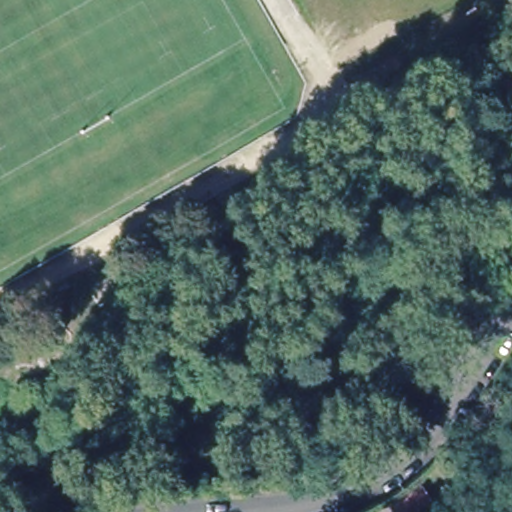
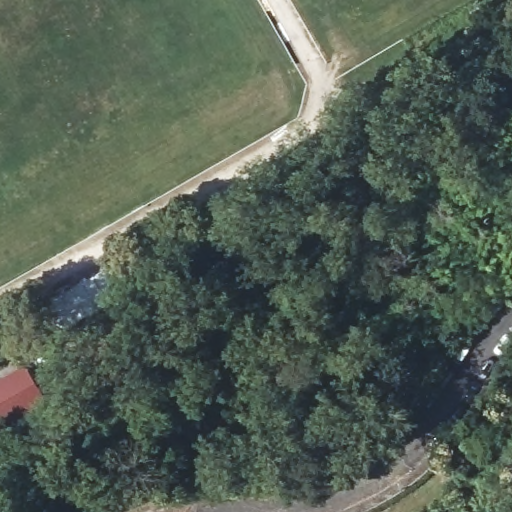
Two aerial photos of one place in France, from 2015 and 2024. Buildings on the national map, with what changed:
new [(45,400),(7,421),(4,415),(0,416),(0,378),(24,364),(45,400)]

